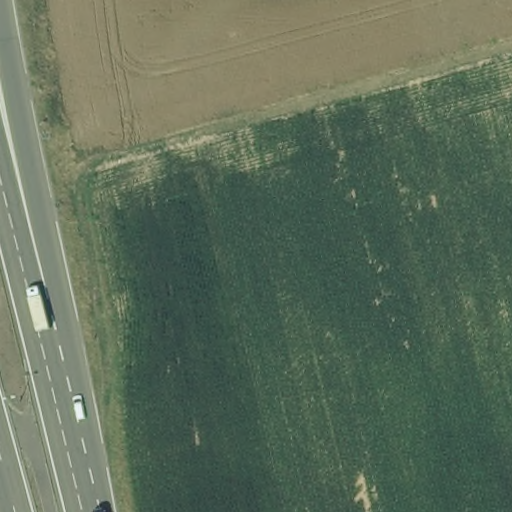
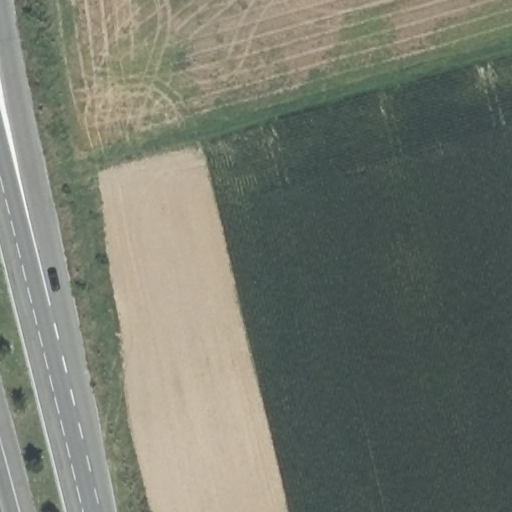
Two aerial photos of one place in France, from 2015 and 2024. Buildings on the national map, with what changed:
[]

